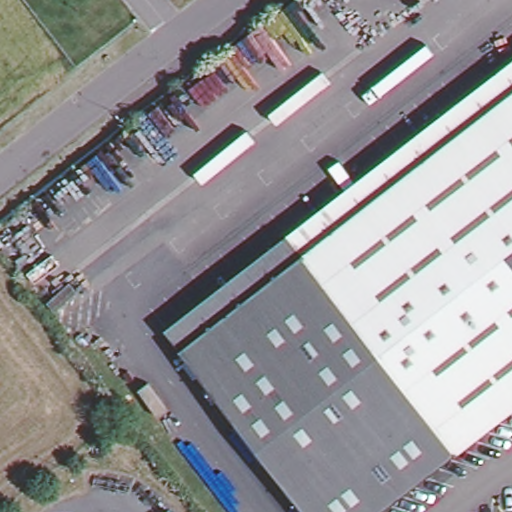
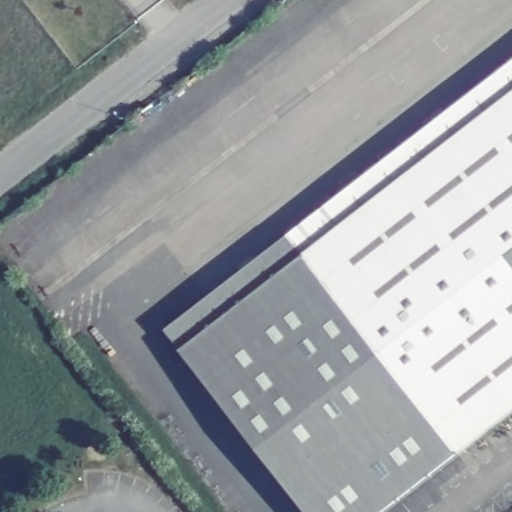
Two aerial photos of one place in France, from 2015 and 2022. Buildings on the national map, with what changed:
unchanged [(512,63),(512,91),(304,252),(290,235),(512,63)]
unchanged [(512,408),(457,451),(304,252),(512,91),(512,408)]
unchanged [(180,347),(167,331),(290,235),(304,252),(180,347)]
unchanged [(457,451),(378,512),(308,512),(180,347),(304,252),(457,451)]

